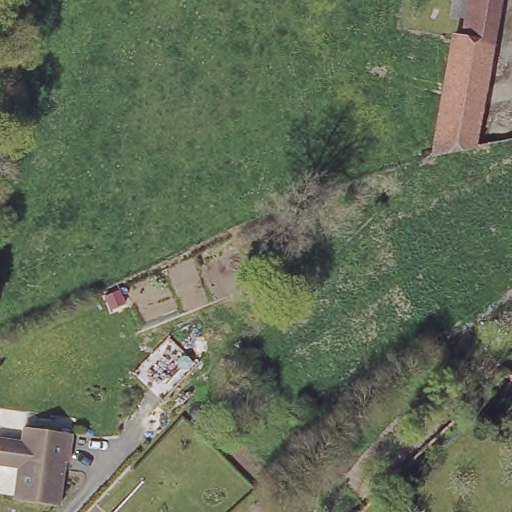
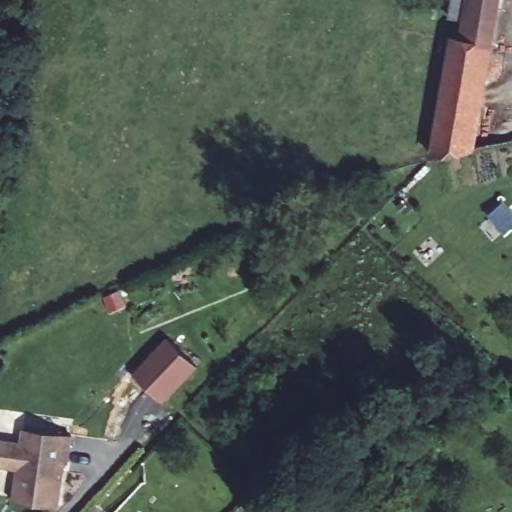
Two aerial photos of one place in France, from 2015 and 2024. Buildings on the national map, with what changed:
unchanged [(466,36),(469,17),(454,14),(455,0),(505,0),(476,149),(434,158),(455,34),(466,36)]
new [(132,373),(167,337),(197,367),(164,402),(132,373)]
unchanged [(23,469),(0,466),(0,440),(26,443),(28,428),(31,429),(36,430),(76,435),(72,464),(70,463),(69,463),(65,495),(63,507),(19,502),(23,469)]
unchanged [(353,512),(358,507),(363,512),(353,512)]

